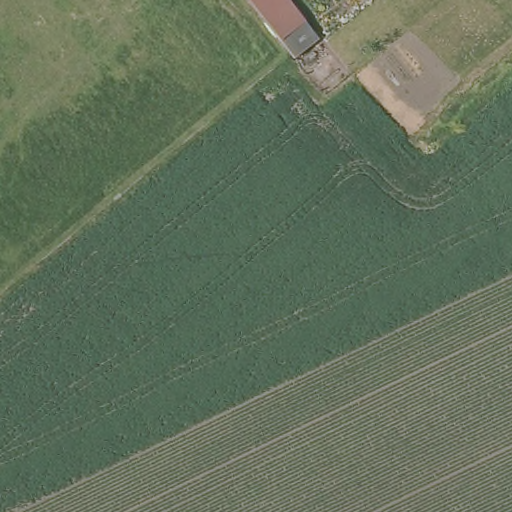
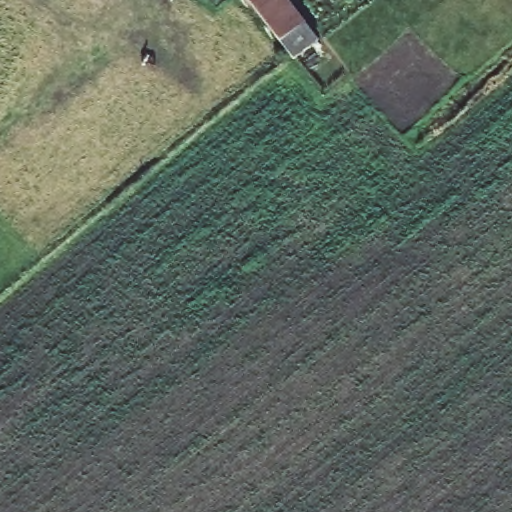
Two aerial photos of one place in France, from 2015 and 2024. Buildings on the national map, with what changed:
unchanged [(320,41),(297,60),(277,36),(283,31),(259,0),(288,0),(320,41)]

